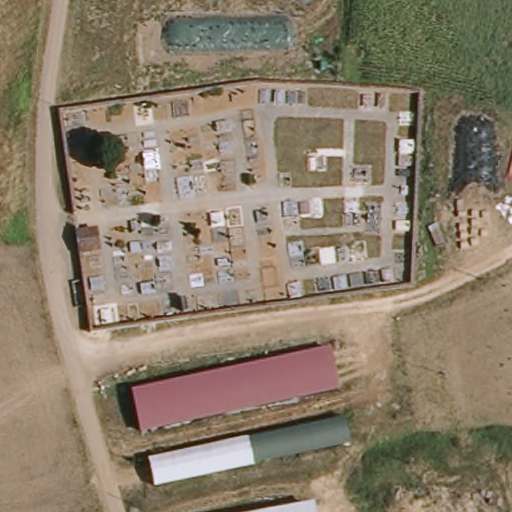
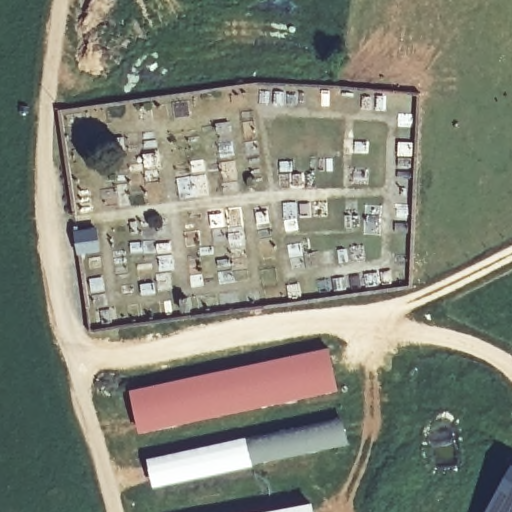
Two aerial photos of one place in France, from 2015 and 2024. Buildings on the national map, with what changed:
unchanged [(77,234),(95,234),(96,256),(79,258),(77,234)]
unchanged [(136,434),(127,395),(326,347),(340,386),(136,434)]
unchanged [(142,459),(340,422),(345,447),(150,488),(142,459)]
new [(512,512),(486,512),(512,466),(512,512)]
unchanged [(309,512),(271,512),(308,505),(309,512)]

